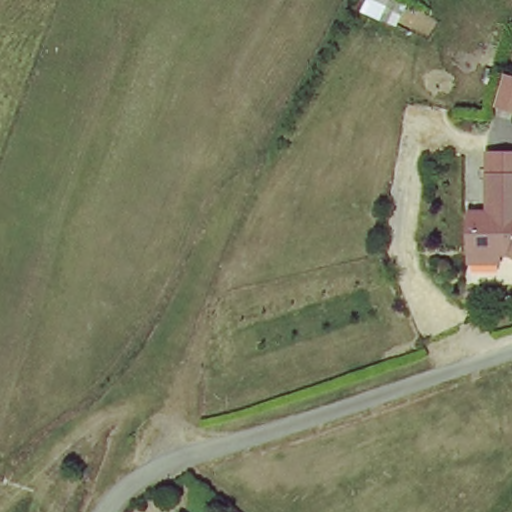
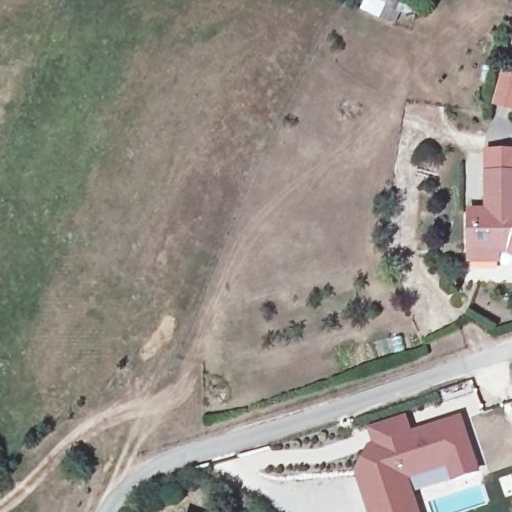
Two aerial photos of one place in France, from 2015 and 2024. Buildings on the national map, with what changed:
unchanged [(367,0),(393,0),(389,9),(367,0)]
unchanged [(512,108),(488,104),(496,72),(512,76),(512,108)]
unchanged [(468,241),(467,209),(485,208),(482,149),(512,148),(512,197),(511,198),(511,210),(512,211),(512,251),(506,247),(495,248),(495,256),(468,257),(468,241)]
new [(355,475),(368,446),(373,445),(368,429),(407,416),(411,432),(461,416),(480,473),(451,482),(447,468),(408,480),(419,512),(367,512),(355,475)]

